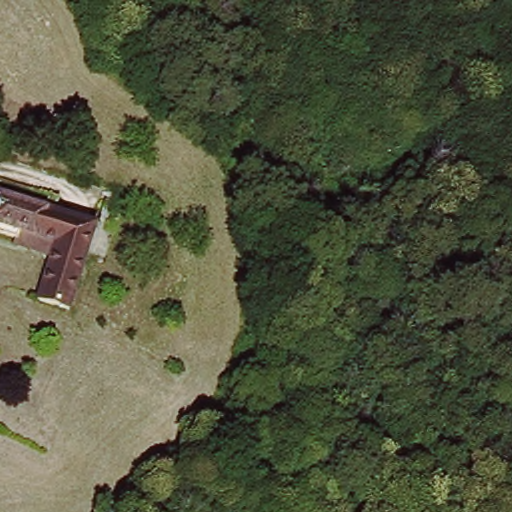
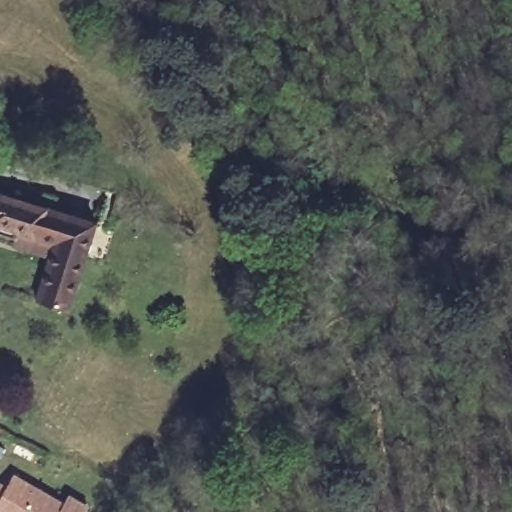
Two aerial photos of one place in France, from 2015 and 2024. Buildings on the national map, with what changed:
unchanged [(46,235),(45,239),(0,222),(0,214),(8,192),(58,210),(61,206),(103,223),(72,310),(66,307),(40,300),(42,295),(63,242),(46,235)]
new [(15,475),(67,503),(72,495),(92,505),(88,512),(0,512),(0,482),(9,487),(15,475)]

